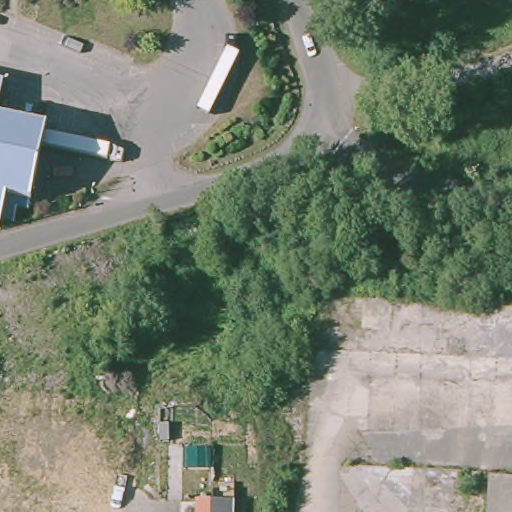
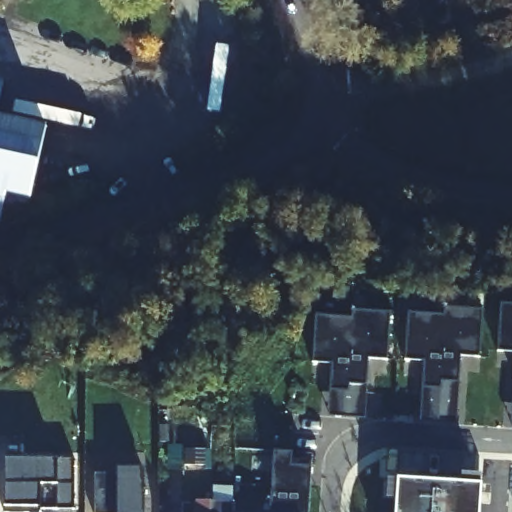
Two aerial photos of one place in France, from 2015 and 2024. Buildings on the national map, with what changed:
unchanged [(288,119),(295,107),(302,113),(296,124),(288,119)]
unchanged [(27,206),(16,203),(12,217),(0,214),(0,115),(44,124),(27,206)]
demolished [(215,224),(215,201),(236,201),(236,224),(215,224)]
new [(498,350),(501,302),(512,303),(512,351),(498,350)]
new [(439,423),(441,387),(439,422),(420,421),(422,386),(424,360),(405,359),(408,311),(444,313),(445,306),(483,308),(480,356),(461,355),(459,389),(457,424),(439,423)]
new [(347,417),(328,415),(330,389),(331,362),(312,361),(315,314),(351,316),(351,309),(390,311),(387,359),(368,358),(366,391),(365,418),(347,417)]
new [(210,474),(188,474),(189,450),(210,451),(210,474)]
new [(288,468),(307,469),(305,512),(270,512),(272,454),(288,454),(288,468)]
new [(71,512),(52,512),(52,488),(38,488),(40,512),(3,512),(5,461),(70,465),(71,512)]
new [(148,512),(99,512),(100,471),(150,471),(148,512)]
new [(388,498),(389,480),(398,481),(398,471),(420,472),(419,482),(480,485),(479,512),(397,512),(397,498),(388,498)]
demolished [(512,480),(512,512),(486,512),(489,479),(512,480)]
unchanged [(186,507),(187,496),(195,491),(210,491),(209,508),(209,512),(180,512),(180,507),(186,507)]
unchanged [(233,508),(233,512),(209,512),(209,508),(233,508)]

